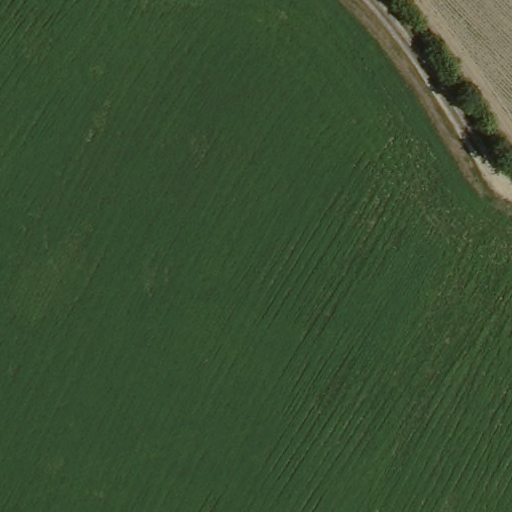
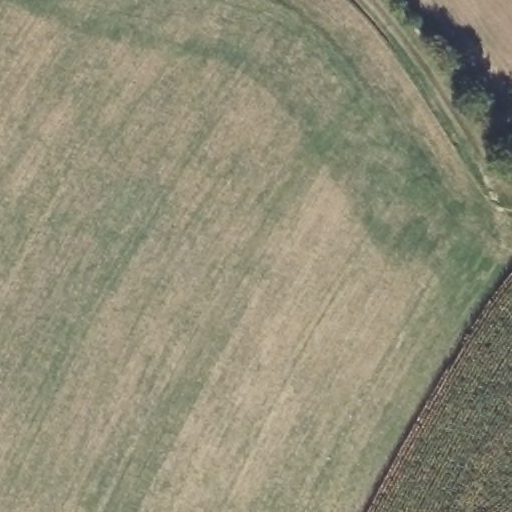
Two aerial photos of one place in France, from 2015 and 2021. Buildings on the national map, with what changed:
[]

